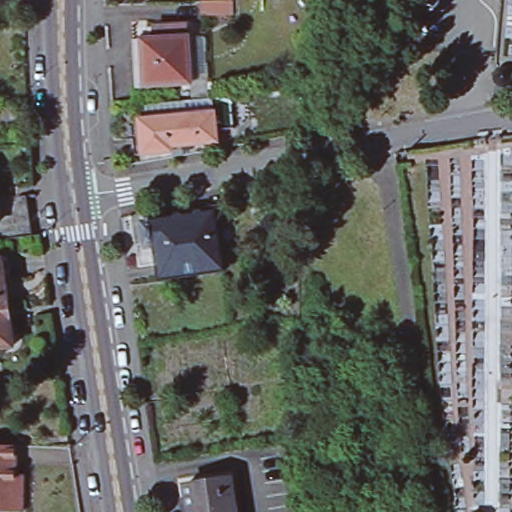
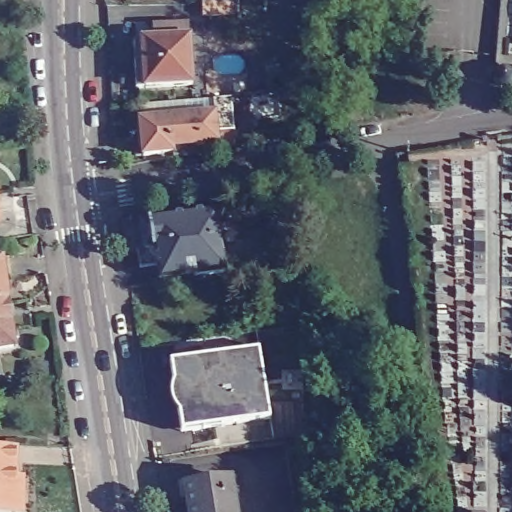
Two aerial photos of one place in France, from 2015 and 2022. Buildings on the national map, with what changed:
unchanged [(231,14),(202,14),(200,14),(201,0),(231,0),(231,14)]
unchanged [(141,91),(139,44),(166,43),(165,29),(193,28),(194,42),(196,89),(141,91)]
unchanged [(497,76),(497,75),(498,74),(499,73),(500,72),(502,71),(504,71),(505,71),(507,71),(508,71),(510,72),(510,73),(512,75),(512,76),(512,81),(512,82),(511,84),(510,85),(509,86),(507,86),(505,87),(504,87),(502,86),(500,86),(500,85),(499,84),(497,83),(497,81),(497,80),(497,78),(497,76)]
unchanged [(190,148),(190,152),(177,154),(177,156),(146,159),(145,141),(131,143),(128,110),(142,109),(185,107),(211,103),(218,102),(218,105),(237,102),(239,133),(220,134),(222,146),(190,148)]
unchanged [(0,194),(12,192),(13,196),(26,194),(29,214),(30,236),(0,239),(0,194)]
unchanged [(145,247),(140,219),(215,209),(224,269),(159,278),(154,246),(145,247)]
unchanged [(0,267),(2,285),(5,308),(6,310),(7,321),(9,332),(10,337),(12,357),(0,359),(0,267)]
new [(257,348),(269,419),(180,433),(169,362),(257,348)]
unchanged [(300,370),(300,381),(290,381),(290,370),(300,370)]
unchanged [(21,511),(0,511),(0,445),(14,445),(13,473),(21,473),(21,488),(21,511)]
unchanged [(194,477),(228,472),(234,512),(189,512),(185,489),(195,487),(194,477)]

